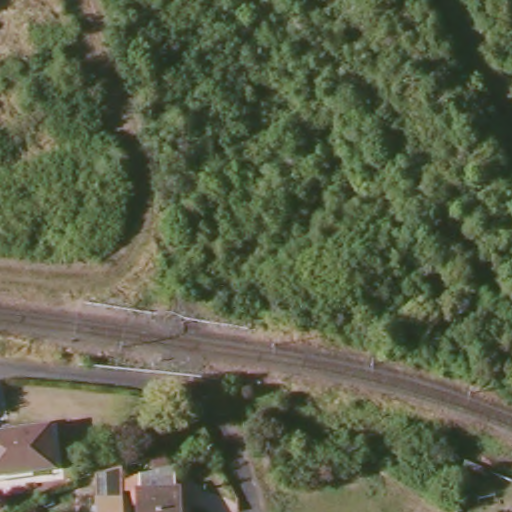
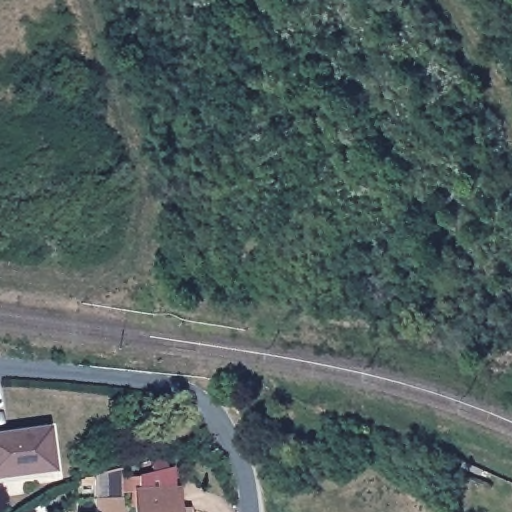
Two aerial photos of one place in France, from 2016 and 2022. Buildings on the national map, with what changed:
unchanged [(0,436),(47,431),(51,472),(0,476),(0,436)]
unchanged [(123,512),(96,512),(93,476),(120,471),(123,512)]
unchanged [(141,499),(141,482),(175,475),(176,498),(179,497),(179,512),(139,512),(138,499),(141,499)]

